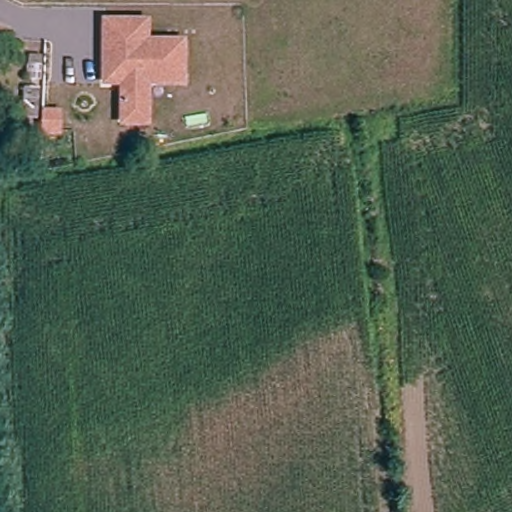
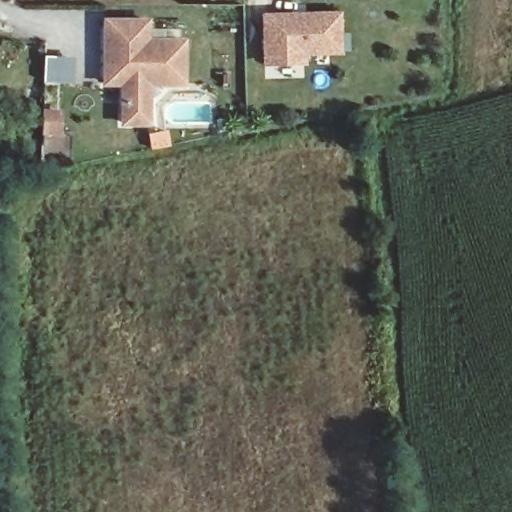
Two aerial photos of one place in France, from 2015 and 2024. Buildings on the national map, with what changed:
new [(342,9),(343,54),(307,56),(307,65),(262,66),(261,12),(342,9)]
unchanged [(122,123),(122,106),(122,82),(104,83),(104,21),(146,21),(146,41),(182,41),(182,82),(147,82),(147,106),(147,122),(122,123)]

